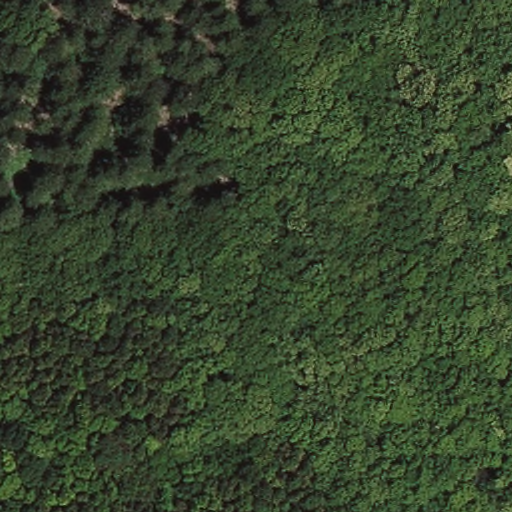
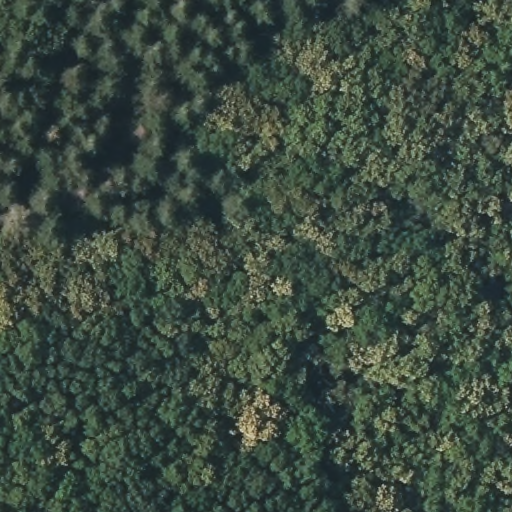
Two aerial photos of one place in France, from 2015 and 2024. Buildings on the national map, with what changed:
unchanged [(258,375),(208,385),(201,351),(250,335),(258,375)]

